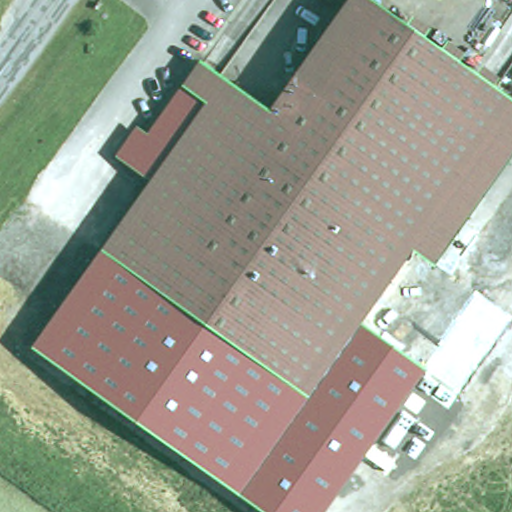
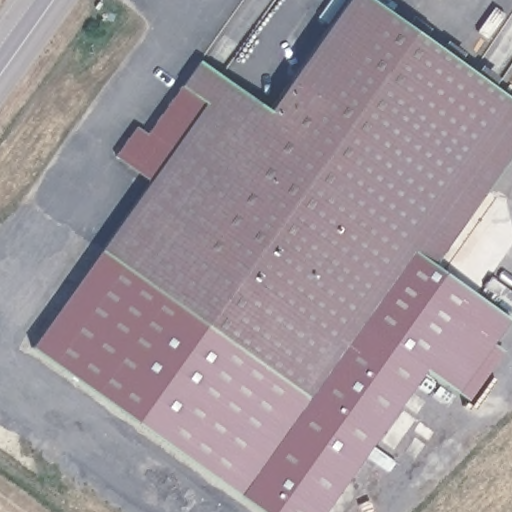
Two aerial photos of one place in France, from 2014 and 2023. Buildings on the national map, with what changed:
unchanged [(512,99),(512,113),(414,250),(309,397),(103,253),(152,185),(118,160),(130,142),(138,131),(148,138),(184,88),(200,64),(223,79),(269,110),(350,0),(371,0),(512,99)]
unchanged [(414,250),(512,113),(512,154),(434,266),(414,250)]
new [(426,368),(360,325),(414,250),(434,266),(510,318),(492,342),(503,350),(470,397),(426,368)]
unchanged [(360,325),(426,368),(324,512),(264,512),(32,346),(103,253),(309,397),(360,325)]

